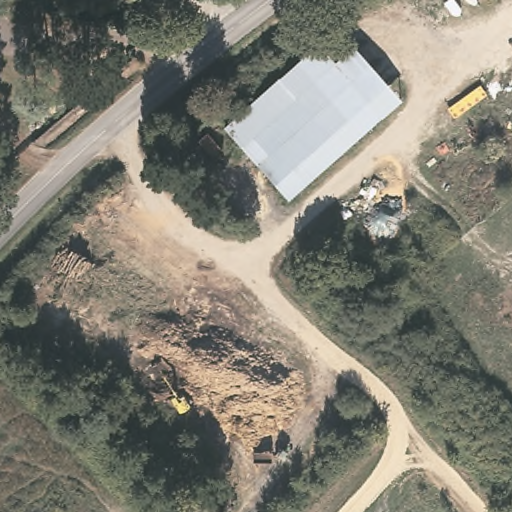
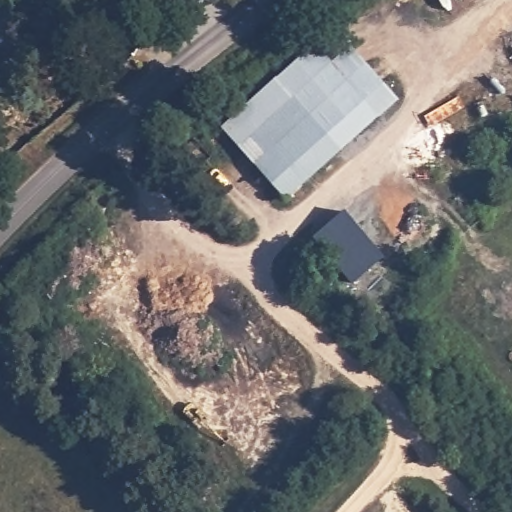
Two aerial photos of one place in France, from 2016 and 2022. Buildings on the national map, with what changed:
unchanged [(220,130),(318,51),(332,65),(355,49),(404,102),(289,201),(220,130)]

